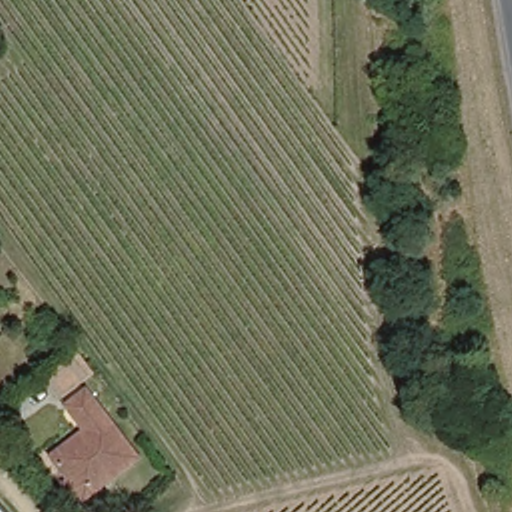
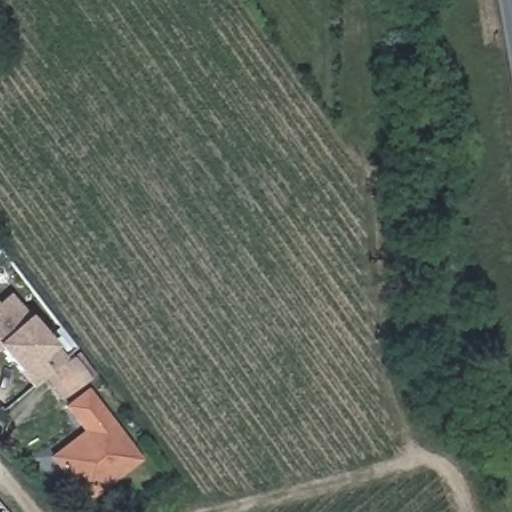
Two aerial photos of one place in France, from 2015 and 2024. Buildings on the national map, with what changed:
new [(0,349),(0,304),(9,296),(61,359),(31,385),(0,349)]
unchanged [(80,349),(98,372),(92,377),(64,397),(48,377),(75,355),(80,349)]
unchanged [(90,392),(141,458),(88,498),(56,456),(88,430),(70,406),(90,392)]

